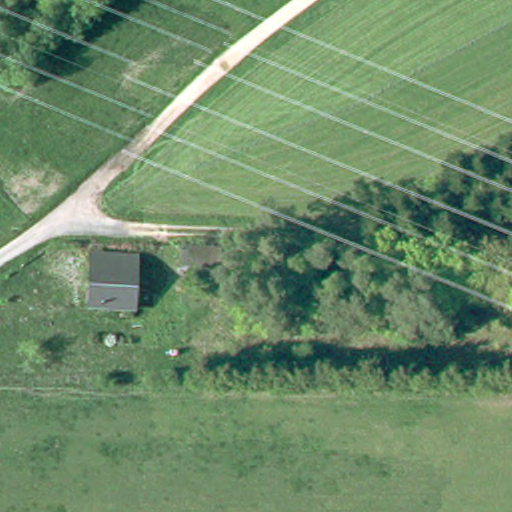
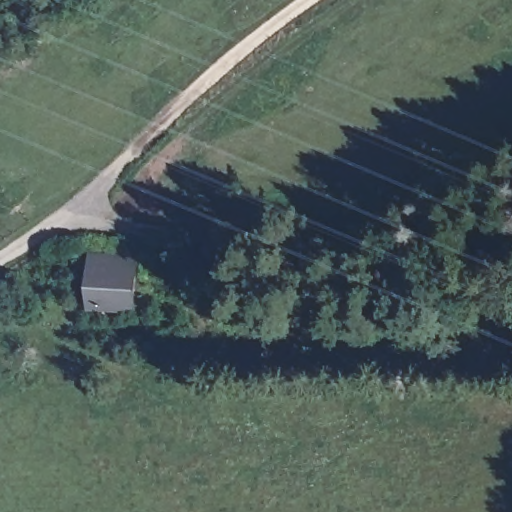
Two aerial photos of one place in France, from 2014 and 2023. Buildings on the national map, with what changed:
unchanged [(151,261),(143,313),(96,307),(104,255),(151,261)]

